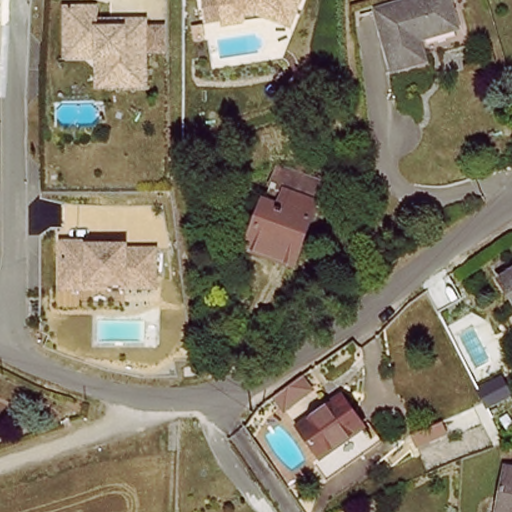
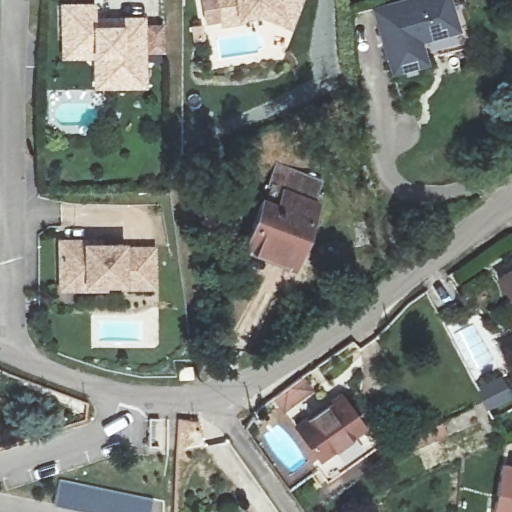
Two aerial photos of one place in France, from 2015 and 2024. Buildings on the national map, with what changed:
unchanged [(250,24),(251,28),(232,32),(226,0),(311,0),(303,22),(299,31),(268,20),(250,24)]
unchanged [(450,0),(459,29),(421,40),(427,60),(392,71),(375,10),(409,0),(450,0)]
unchanged [(102,61),(70,63),(70,49),(69,13),(101,12),(102,26),(127,25),(150,24),(152,91),(111,92),(103,93),(102,61)]
unchanged [(280,202),(286,187),(315,200),(289,262),(245,243),(264,196),(280,202)]
unchanged [(93,246),(93,250),(130,251),(129,255),(159,256),(157,295),(126,293),(126,288),(91,287),(91,292),(65,290),(67,245),(93,246)]
unchanged [(512,295),(500,271),(512,265),(512,295)]
new [(493,358),(502,378),(481,388),(472,368),(493,358)]
unchanged [(332,394),(335,400),(350,392),(369,426),(321,451),(300,412),(332,394)]
unchanged [(512,512),(486,512),(500,456),(512,459),(512,512)]
new [(151,499),(149,512),(97,512),(57,504),(61,482),(151,499)]

